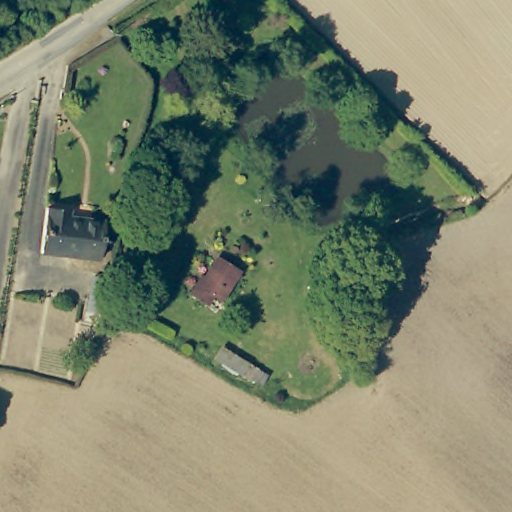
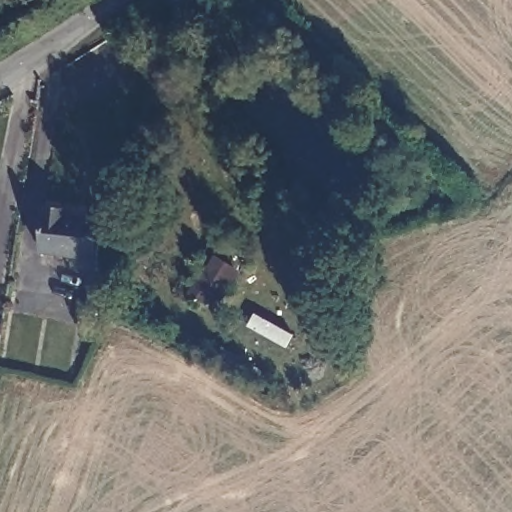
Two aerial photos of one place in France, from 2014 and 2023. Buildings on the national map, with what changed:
unchanged [(65,212),(66,219),(103,223),(99,259),(40,253),(45,209),(65,212)]
unchanged [(252,291),(237,318),(228,314),(222,322),(205,312),(218,293),(228,298),(237,282),(252,291)]
unchanged [(269,381),(262,393),(238,379),(244,368),(269,381)]

